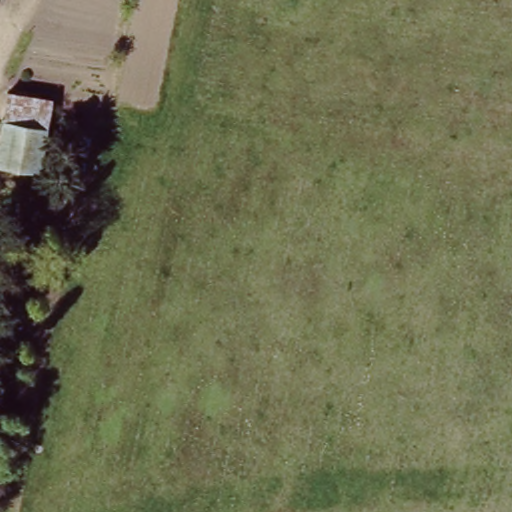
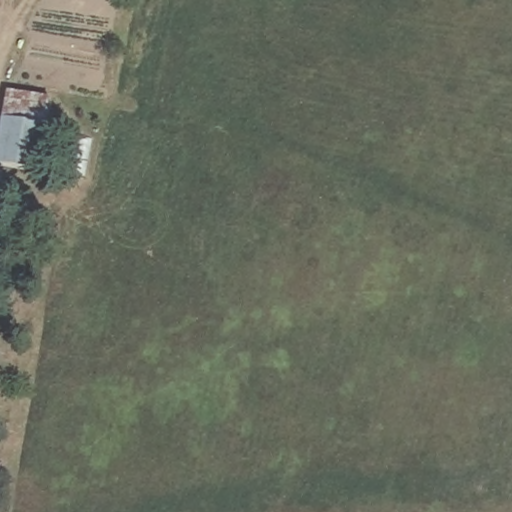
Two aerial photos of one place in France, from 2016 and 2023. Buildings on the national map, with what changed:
unchanged [(5,116),(9,87),(54,94),(49,124),(5,116)]
unchanged [(16,177),(18,164),(0,161),(0,144),(5,116),(49,124),(39,181),(16,177)]

